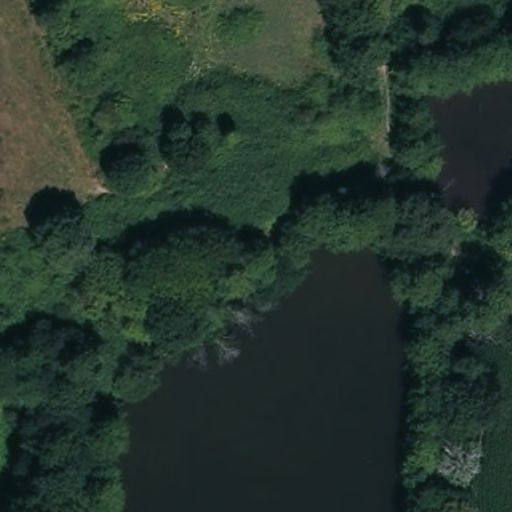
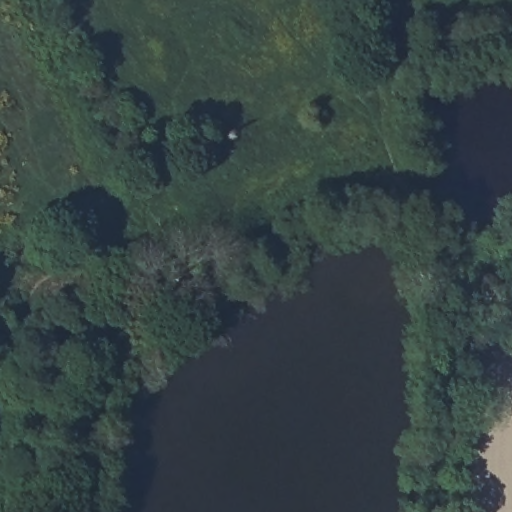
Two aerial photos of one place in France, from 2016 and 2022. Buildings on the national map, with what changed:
unchanged [(186,308),(177,306),(179,298),(187,300),(186,308)]

